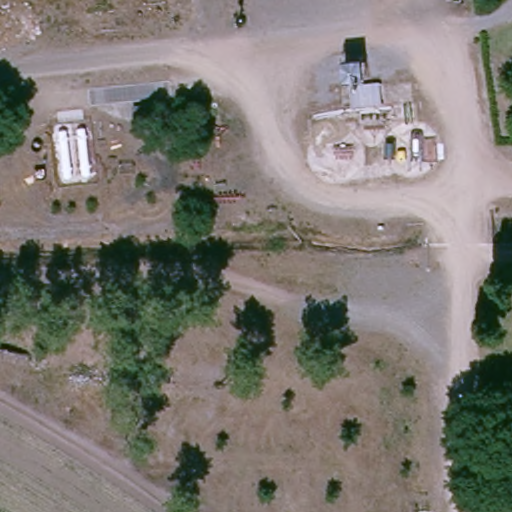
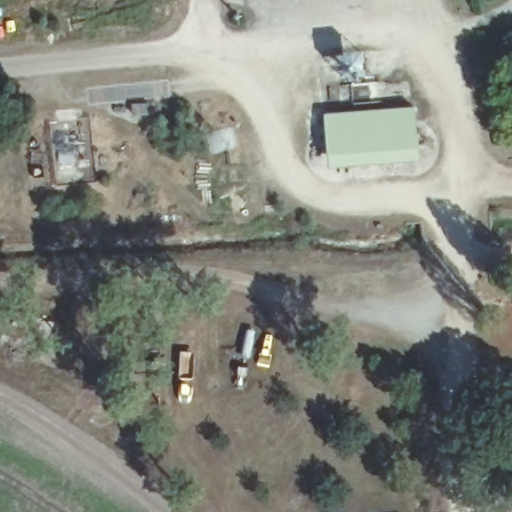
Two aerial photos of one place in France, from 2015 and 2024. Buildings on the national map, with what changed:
new [(329,169),(325,116),(415,110),(418,162),(329,169)]

